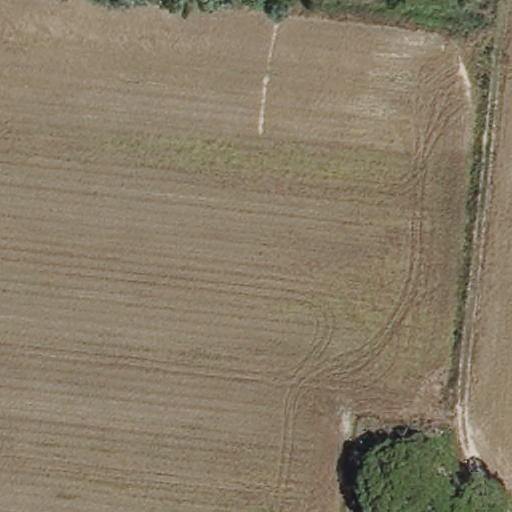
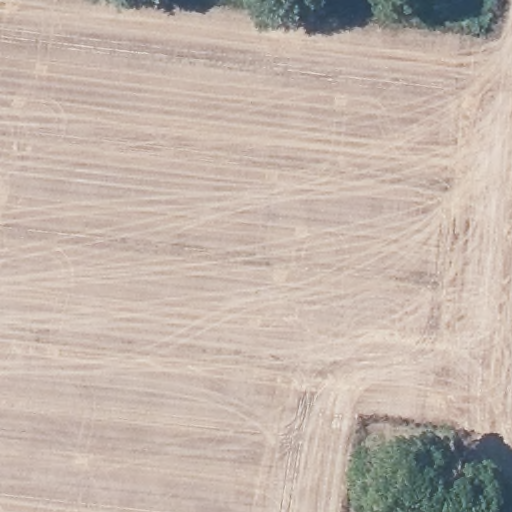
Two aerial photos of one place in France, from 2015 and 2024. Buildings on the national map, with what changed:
[]

